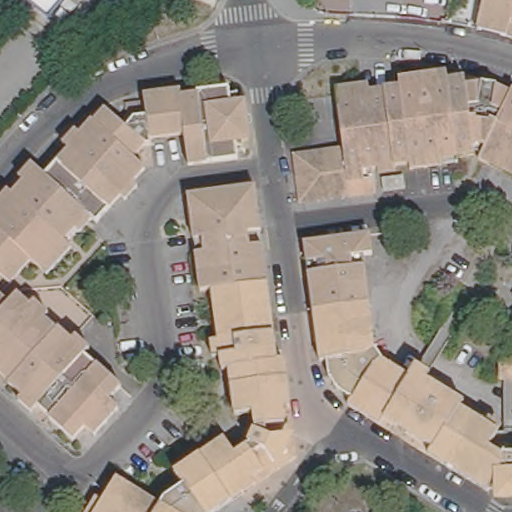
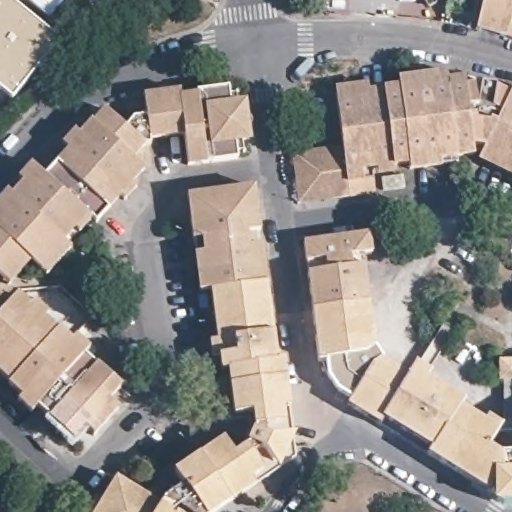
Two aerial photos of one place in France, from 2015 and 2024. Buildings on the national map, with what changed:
new [(14,97),(0,86),(0,0),(12,0),(59,38),(14,97)]
unchanged [(32,0),(59,0),(49,13),(32,0)]
unchanged [(494,32),(485,30),(473,27),(479,0),(512,0),(512,10),(505,35),(494,32)]
unchanged [(505,35),(512,10),(512,37),(505,35)]
unchanged [(344,143),(338,91),(400,84),(399,76),(449,71),(450,77),(467,75),(467,81),(481,80),(481,77),(499,82),(512,88),(512,173),(479,157),(485,144),(473,141),(474,153),(458,155),(459,162),(412,168),(411,161),(375,165),(376,172),(378,189),(350,193),(299,199),(293,149),(344,143)]
unchanged [(15,192),(26,180),(20,175),(33,161),(39,166),(46,172),(70,146),(63,140),(76,126),(82,132),(94,119),(96,120),(107,107),(122,120),(132,110),(137,115),(149,114),(147,98),(146,92),(182,86),(183,92),(199,90),(199,88),(229,84),(230,88),(237,86),(239,98),(243,97),(249,139),(245,140),(248,152),(240,153),(241,157),(190,163),(186,132),(153,137),(154,142),(147,143),(136,156),(146,166),(134,179),(138,184),(126,198),(121,193),(98,219),(94,215),(81,230),(77,226),(66,237),(69,239),(75,245),(49,273),(43,267),(33,258),(12,280),(0,269),(0,197),(9,187),(15,192)]
unchanged [(403,174),(405,185),(384,187),(382,176),(403,174)]
unchanged [(196,216),(192,190),(206,189),(246,184),(259,183),(262,208),(265,228),(259,229),(262,244),(267,243),(272,280),(271,281),(216,287),(210,288),(207,289),(201,250),(200,238),(196,216)]
unchanged [(317,257),(314,238),(380,230),(383,251),(367,253),(373,300),(323,307),(318,269),(317,257)]
unchanged [(101,495),(107,498),(121,476),(164,502),(169,495),(187,483),(179,470),(228,437),(239,452),(253,443),(260,426),(258,411),(241,412),(234,368),(227,368),(216,287),(271,281),(281,359),(288,359),(301,454),(214,512),(91,512),(101,495)]
unchanged [(25,392),(0,369),(0,289),(11,299),(20,291),(33,304),(39,299),(51,310),(47,316),(73,339),(78,334),(91,346),(86,352),(122,384),(112,396),(116,401),(121,405),(95,432),(91,429),(86,424),(75,437),(38,403),(33,409),(21,397),(25,392)]
unchanged [(510,497),(510,491),(499,485),(496,489),(358,403),(361,398),(349,391),(338,376),(337,374),(335,358),(330,359),(323,307),(373,300),(377,300),(384,349),(390,357),(417,374),(421,369),(473,401),(470,406),(508,431),(498,446),(512,455),(512,497),(510,497)]
unchanged [(512,359),(512,377),(500,377),(500,358),(512,359)]

